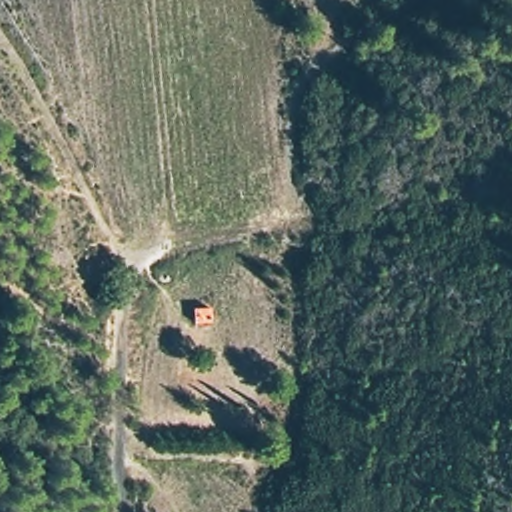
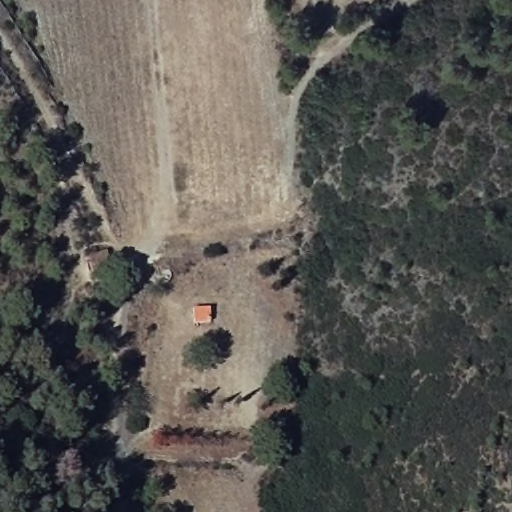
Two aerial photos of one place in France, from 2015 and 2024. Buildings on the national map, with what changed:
unchanged [(213,320),(189,320),(189,297),(213,302),(213,320)]

